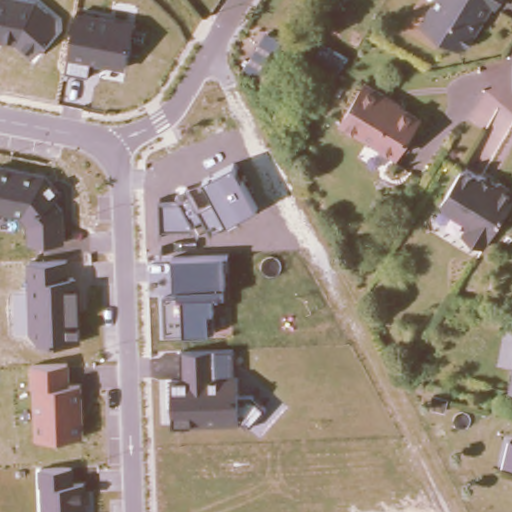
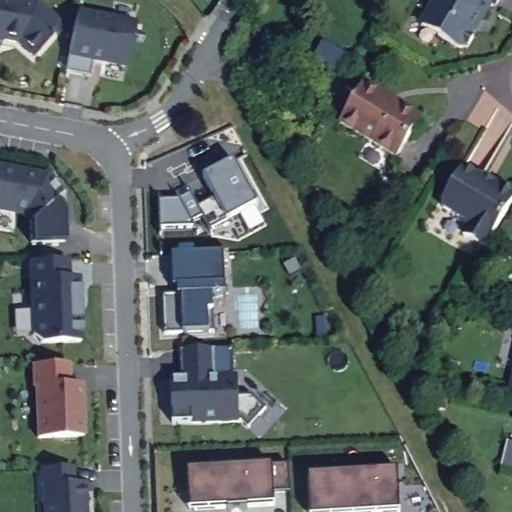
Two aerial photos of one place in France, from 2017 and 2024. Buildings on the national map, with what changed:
unchanged [(17,43),(0,40),(0,0),(35,0),(38,0),(58,16),(58,29),(31,57),(17,43)]
unchanged [(498,7),(494,5),(485,20),(481,16),(473,30),(476,39),(468,52),(424,25),(440,0),(502,0),(498,7)]
unchanged [(90,62),(89,75),(66,71),(68,57),(75,11),(133,21),(126,69),(90,62)]
unchanged [(253,75),(268,51),(281,60),(267,84),(253,75)]
unchanged [(369,85),(387,97),(385,100),(421,124),(395,161),(384,177),(357,160),(369,143),(341,125),(369,85)]
unchanged [(181,201),(190,196),(198,210),(216,197),(206,179),(234,164),(258,207),(228,221),(211,231),(204,218),(193,223),(195,229),(161,229),(160,201),(181,201)]
unchanged [(28,242),(28,225),(21,216),(0,214),(0,165),(48,175),(63,195),(58,198),(64,211),(65,241),(28,242)]
unchanged [(466,239),(469,234),(467,224),(446,211),(444,206),(464,175),(468,175),(481,182),(486,181),(499,189),(504,189),(512,194),(512,214),(488,252),(466,239)]
unchanged [(184,334),(163,335),(163,294),(178,293),(178,287),(175,288),(173,256),(226,254),(226,295),(213,295),(214,311),(209,311),(210,332),(184,334)]
unchanged [(28,261),(69,260),(71,277),(80,277),(83,341),(39,343),(29,333),(28,261)]
unchanged [(249,426),(244,421),(193,422),(174,424),(173,377),(181,376),(181,350),(233,350),(233,376),(239,376),(239,396),(251,396),(264,408),(249,426)]
unchanged [(35,439),(33,388),(31,389),(30,365),(70,363),(72,385),(83,384),(84,435),(35,439)]
unchanged [(512,386),(512,390),(511,390),(512,386)]
new [(289,492),(273,493),(274,505),(247,507),(247,510),(226,510),(226,508),(189,510),(186,470),(288,464),(289,492)]
new [(328,466),(328,473),(399,468),(401,510),(371,512),(310,512),(307,467),(328,466)]
unchanged [(40,486),(39,470),(74,468),(74,483),(84,483),(85,512),(42,512),(41,486),(40,486)]

